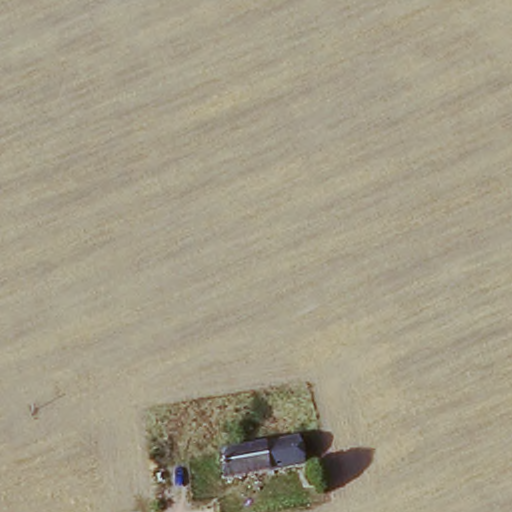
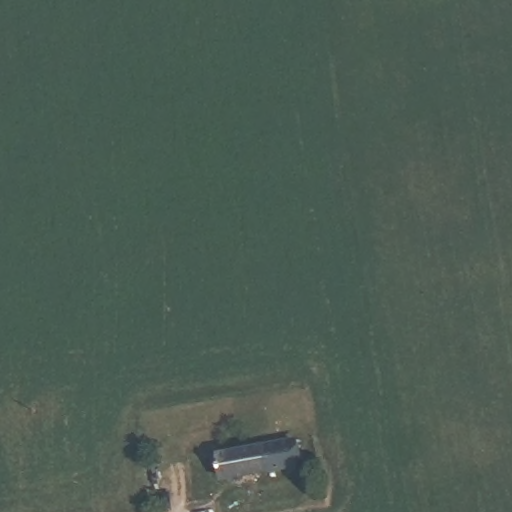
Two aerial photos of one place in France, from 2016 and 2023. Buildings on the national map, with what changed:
unchanged [(297,431),(301,462),(225,475),(220,442),(297,431)]

